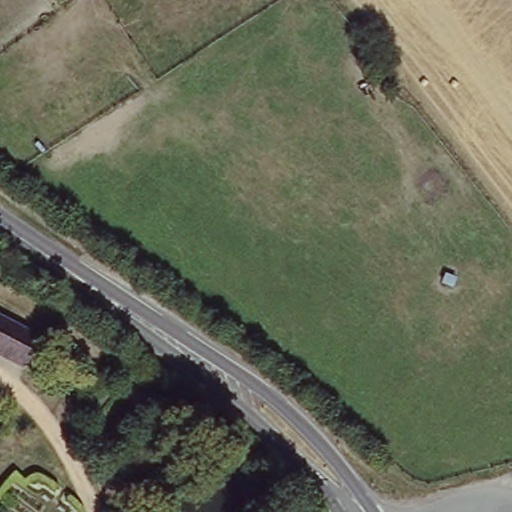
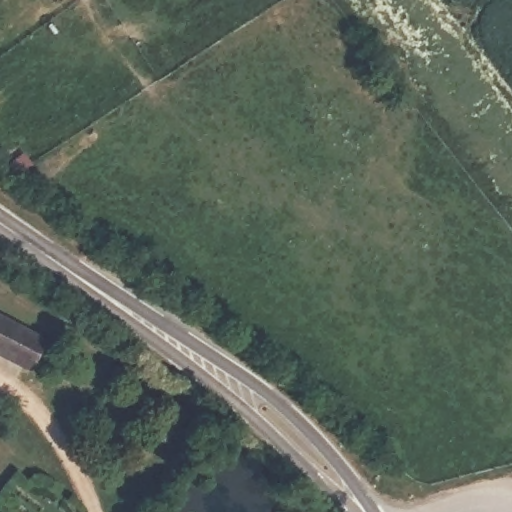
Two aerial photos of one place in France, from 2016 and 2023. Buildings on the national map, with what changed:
unchanged [(28,361),(0,348),(0,310),(42,331),(28,361)]

